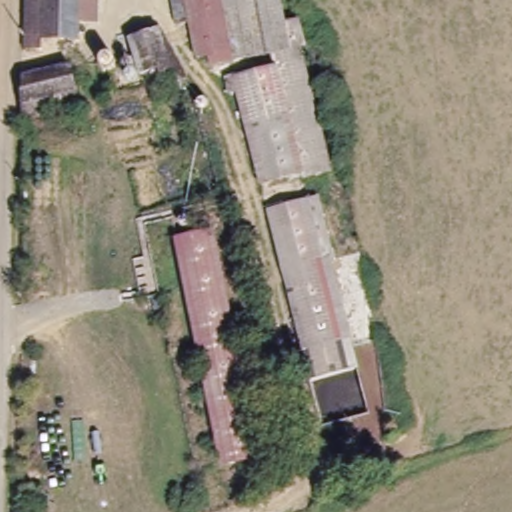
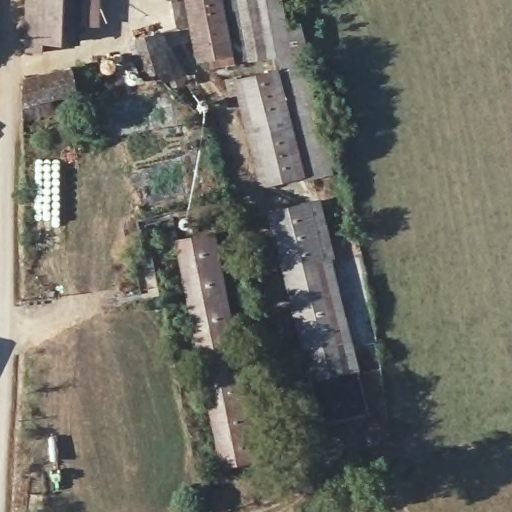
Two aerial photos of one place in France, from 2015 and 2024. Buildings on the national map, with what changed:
unchanged [(0,0),(2,0),(0,36),(0,0)]
unchanged [(70,44),(33,45),(33,52),(16,51),(21,0),(74,0),(71,22),(70,44)]
unchanged [(71,22),(74,0),(96,0),(94,23),(71,22)]
unchanged [(221,21),(188,30),(184,32),(176,34),(170,0),(216,0),(217,5),(221,21)]
unchanged [(233,0),(248,60),(214,71),(210,61),(197,64),(188,30),(221,21),(217,5),(231,0),(233,0)]
unchanged [(266,176),(239,89),(229,92),(225,80),(280,62),(275,47),(269,49),(256,0),(279,0),(286,21),(294,17),(301,37),(295,41),(333,165),(307,172),(304,164),(266,176)]
unchanged [(117,41),(150,32),(155,42),(163,39),(174,70),(130,83),(117,41)]
unchanged [(10,77),(70,58),(81,101),(36,115),(33,105),(11,111),(10,77)]
unchanged [(321,214),(362,352),(348,356),(311,216),(321,214)]
unchanged [(348,356),(310,367),(269,229),(311,216),(348,356)]
unchanged [(171,242),(207,231),(261,453),(224,464),(171,242)]

